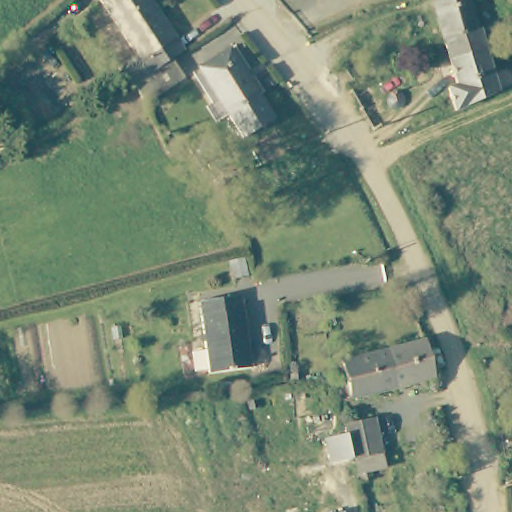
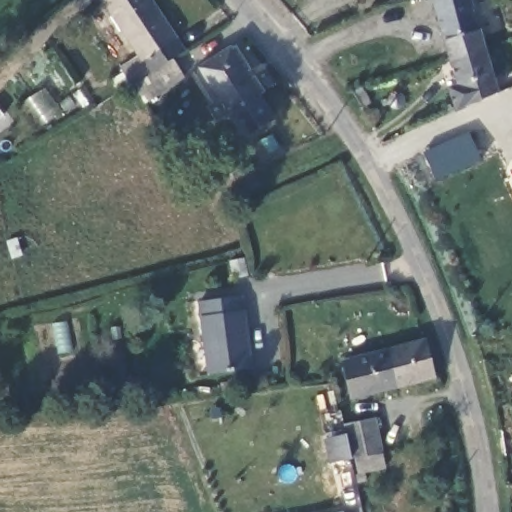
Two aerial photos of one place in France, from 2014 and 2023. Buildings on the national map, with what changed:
unchanged [(105,0),(156,0),(189,51),(177,60),(189,77),(149,102),(139,85),(154,75),(105,0)]
unchanged [(462,87),(454,59),(449,39),(437,0),(473,0),(474,2),(482,30),(487,50),(494,76),(499,92),(458,110),(452,90),(462,87)]
unchanged [(253,132),(239,110),(209,64),(239,45),(269,91),(283,114),(253,132)]
new [(434,180),(423,152),(468,131),(481,159),(434,180)]
unchanged [(240,296),(250,369),(209,375),(199,302),(240,296)]
unchanged [(424,340),(434,377),(394,387),(384,350),(424,340)]
unchanged [(394,387),(351,398),(342,361),(384,350),(394,387)]
unchanged [(380,428),(388,462),(354,470),(348,435),(380,428)]

